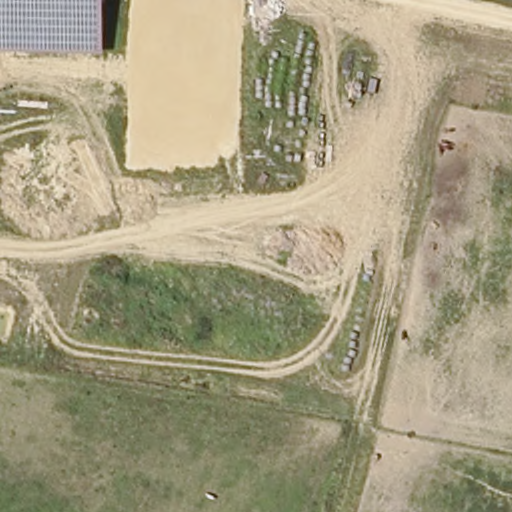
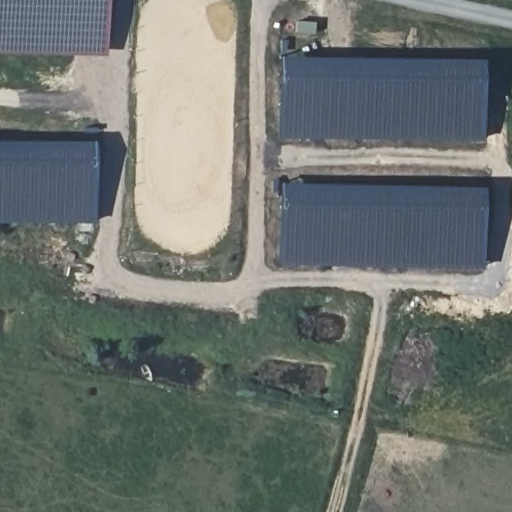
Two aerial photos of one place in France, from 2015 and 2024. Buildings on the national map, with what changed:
unchanged [(107,0),(106,55),(0,53),(0,0),(107,0)]
new [(487,59),(487,139),(279,138),(283,54),(487,59)]
new [(99,142),(98,221),(0,220),(0,140),(99,142)]
new [(486,187),(486,266),(280,261),(283,181),(486,187)]

